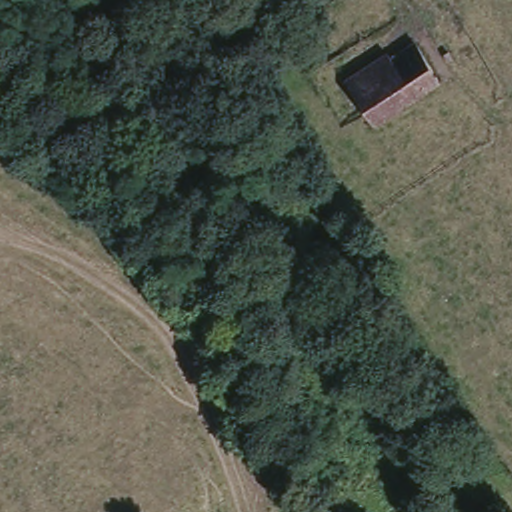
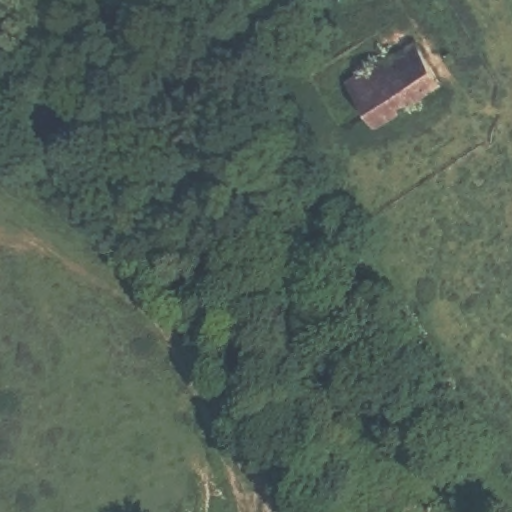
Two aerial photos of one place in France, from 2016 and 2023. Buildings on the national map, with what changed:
unchanged [(378,67),(382,73),(419,53),(438,85),(363,128),(339,87),(378,67)]

